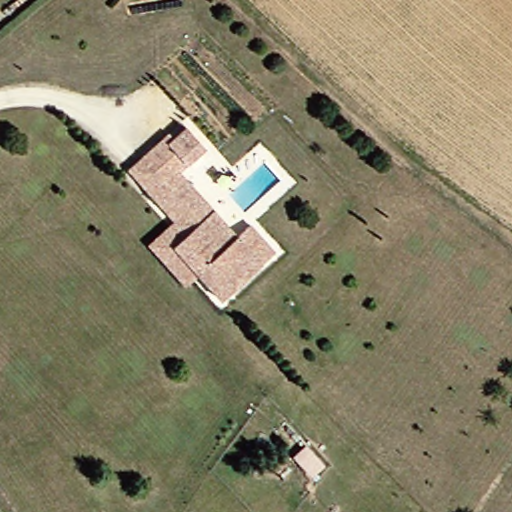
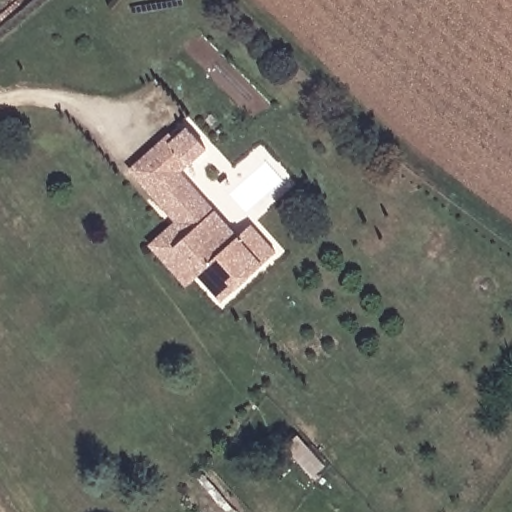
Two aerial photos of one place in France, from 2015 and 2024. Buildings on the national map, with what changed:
unchanged [(138,171),(150,159),(175,136),(185,142),(196,131),(216,153),(193,176),(250,239),(262,229),(285,256),(230,306),(203,278),(182,253),(199,236),(186,221),(170,203),(138,171)]
unchanged [(190,290),(153,249),(186,221),(199,236),(182,253),(203,278),(190,290)]

